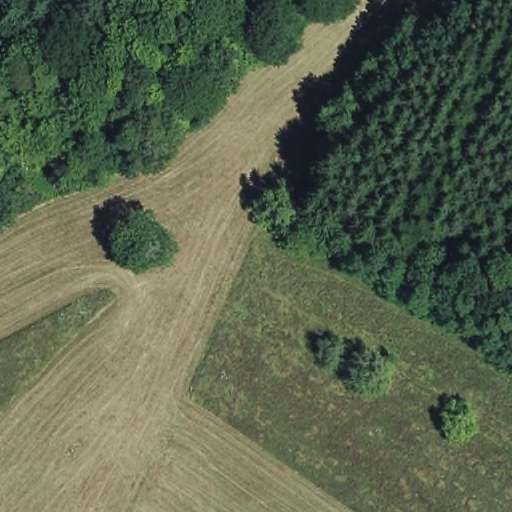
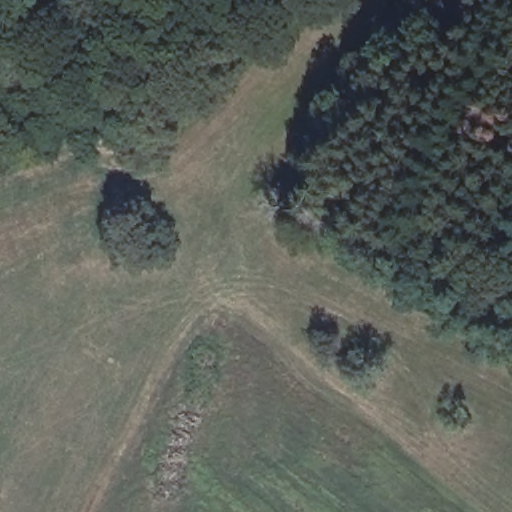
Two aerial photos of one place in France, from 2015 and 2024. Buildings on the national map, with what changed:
[]

